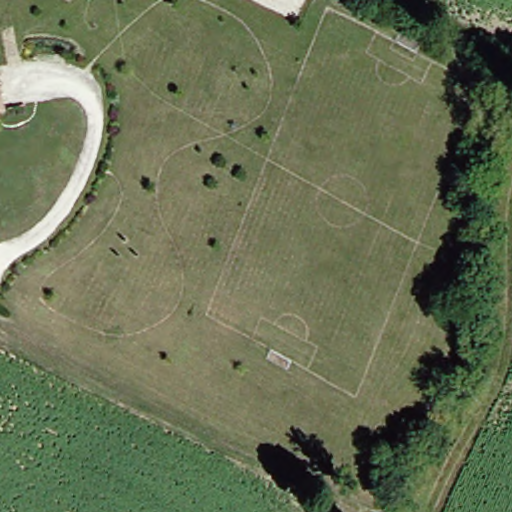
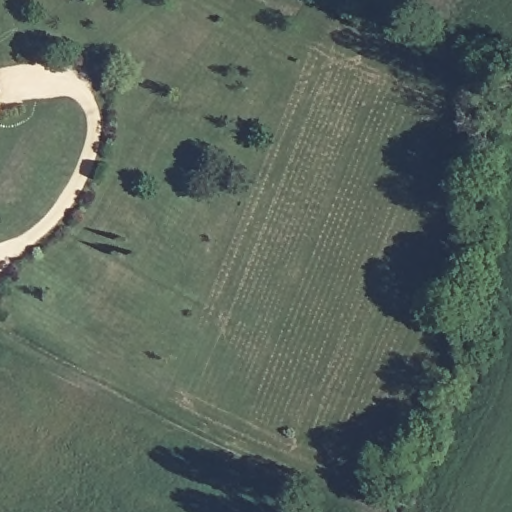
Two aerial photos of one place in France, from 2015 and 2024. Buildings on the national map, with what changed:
unchanged [(4,105),(0,107),(0,89),(4,105)]

